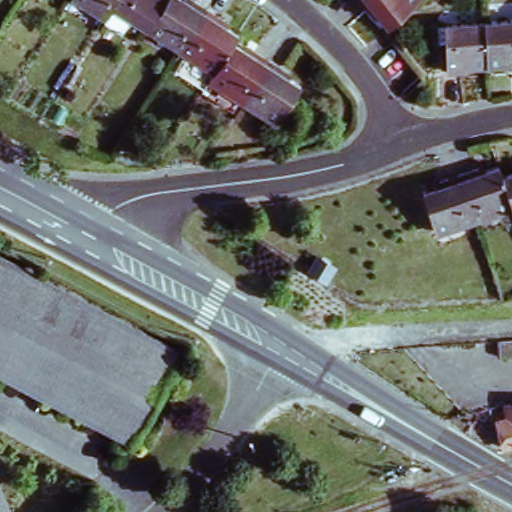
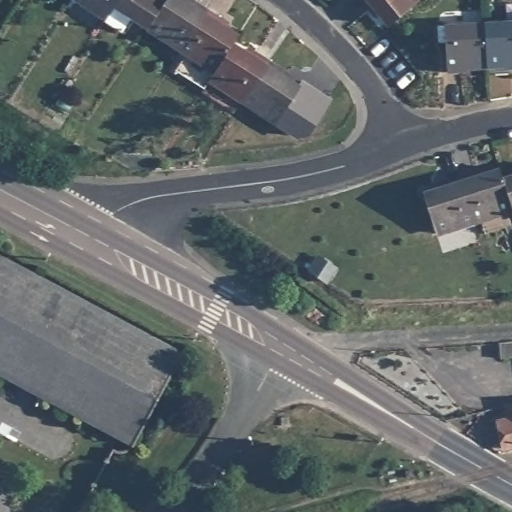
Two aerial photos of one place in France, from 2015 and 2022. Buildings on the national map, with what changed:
unchanged [(80,0),(117,0),(107,16),(80,0)]
unchanged [(165,0),(147,28),(130,18),(121,33),(103,22),(107,16),(117,0),(165,0)]
unchanged [(188,0),(190,0),(207,10),(181,50),(147,28),(165,0),(181,0),(186,3),(188,0)]
unchanged [(417,0),(392,20),(379,4),(374,7),(368,0),(417,0)]
unchanged [(214,70),(181,50),(207,10),(223,20),(221,24),(237,35),(231,43),(214,70)]
unchanged [(504,58),(485,59),(483,18),(512,17),(512,64),(504,64),(504,58)]
unchanged [(445,37),(438,37),(437,21),(445,20),(483,18),(485,59),(463,60),(464,67),(446,67),(446,62),(445,37)]
unchanged [(209,79),(214,70),(231,43),(249,55),(252,50),(268,61),(243,100),(209,79)]
unchanged [(276,122),(243,100),(268,61),(285,71),(282,76),(299,87),(276,122)]
unchanged [(512,200),(512,210),(492,217),(478,222),(463,176),(481,171),(483,175),(502,169),(506,179),(512,200)]
unchanged [(428,193),(444,187),(443,182),(463,176),(478,222),(441,233),(428,193)]
unchanged [(506,179),(512,177),(512,200),(506,179)]
unchanged [(134,438),(134,439),(129,443),(0,375),(0,252),(180,351),(181,351),(134,438)]
unchanged [(499,342),(512,341),(512,358),(500,357),(499,342)]
unchanged [(512,414),(512,433),(508,415),(512,414)]

